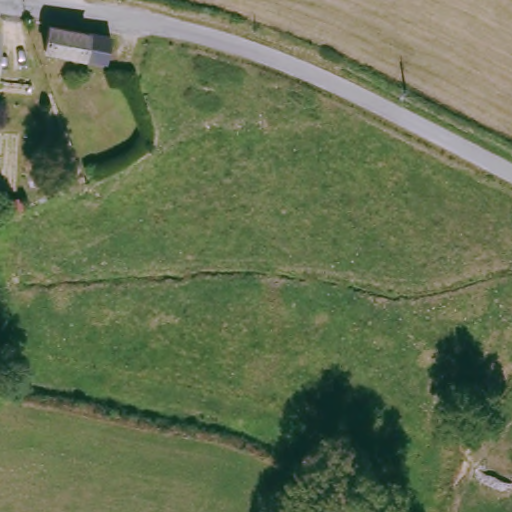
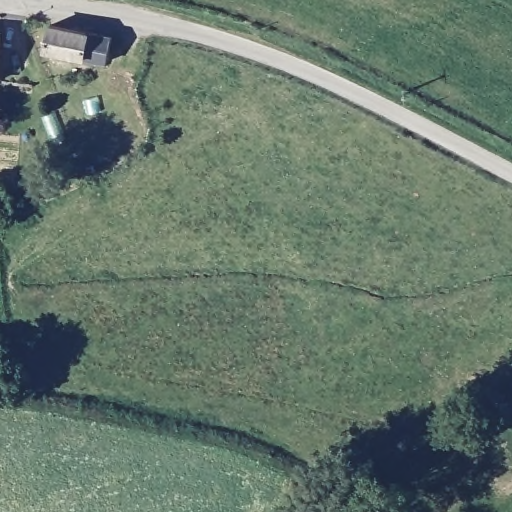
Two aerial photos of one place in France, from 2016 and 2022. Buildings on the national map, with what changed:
unchanged [(82,63),(34,56),(42,21),(89,29),(82,63)]
unchanged [(98,70),(106,35),(140,39),(133,74),(98,70)]

